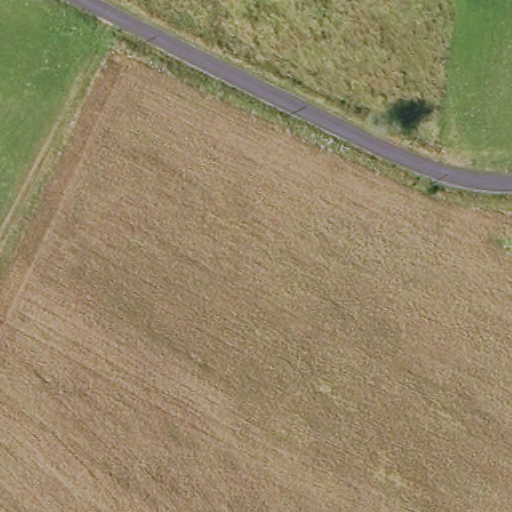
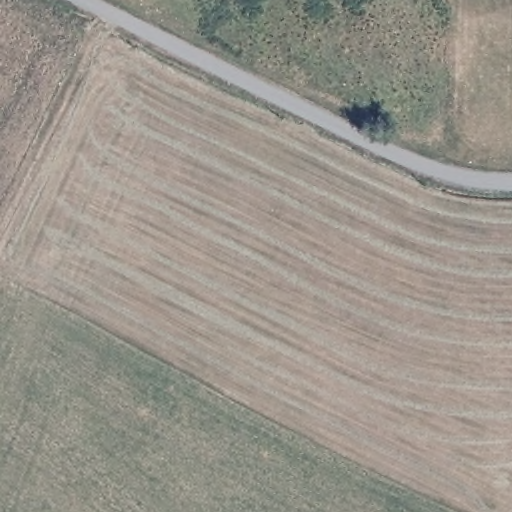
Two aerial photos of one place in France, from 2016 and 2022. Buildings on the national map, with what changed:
[]

